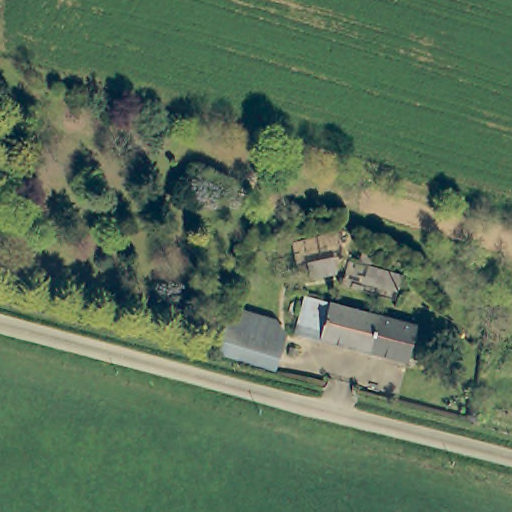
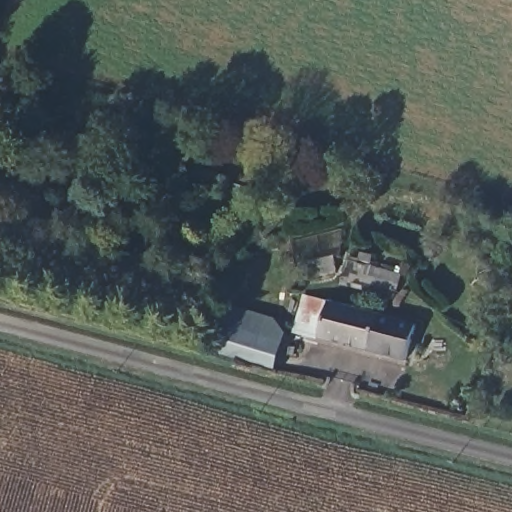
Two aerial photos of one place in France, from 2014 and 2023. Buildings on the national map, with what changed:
unchanged [(389,356),(301,336),(299,336),(307,302),(312,303),(396,322),(416,327),(407,360),(389,356)]
unchanged [(233,354),(226,352),(236,315),(291,329),(284,353),(281,367),(233,354)]

